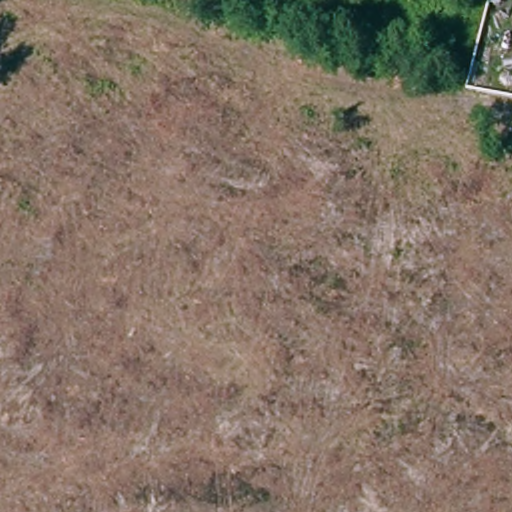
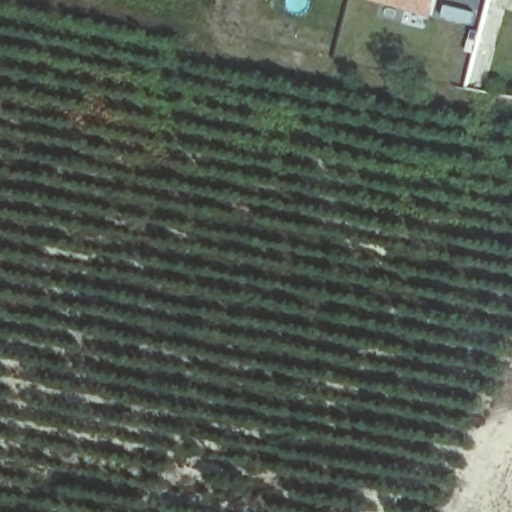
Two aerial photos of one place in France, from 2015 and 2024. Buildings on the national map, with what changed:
new [(369,0),(438,0),(434,15),(369,0)]

